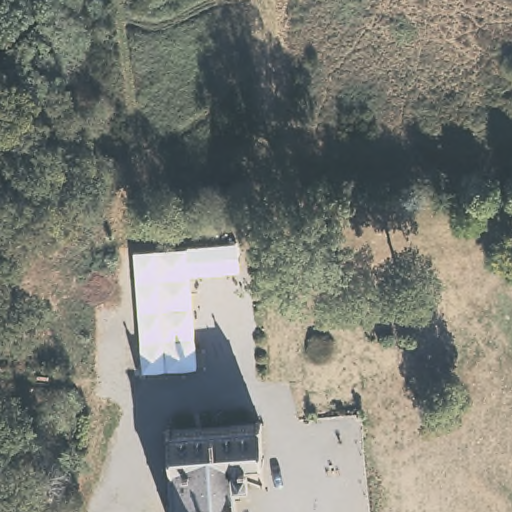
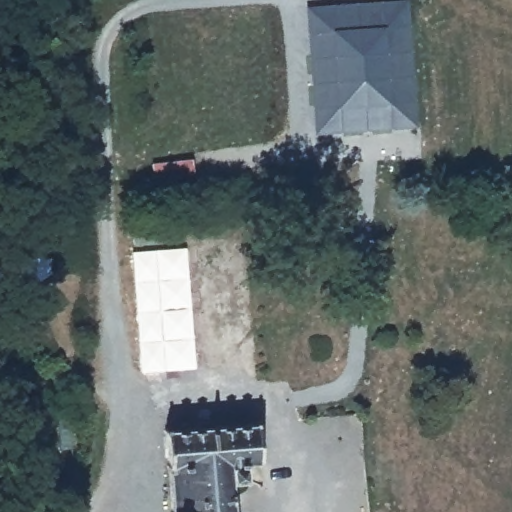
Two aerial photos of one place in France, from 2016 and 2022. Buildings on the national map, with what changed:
new [(316,135),(306,6),(401,0),(408,0),(417,126),(316,135)]
new [(192,245),(201,363),(145,366),(137,247),(192,245)]
unchanged [(260,461),(245,462),(246,480),(232,481),(234,512),(171,512),(166,426),(257,419),(260,461)]

